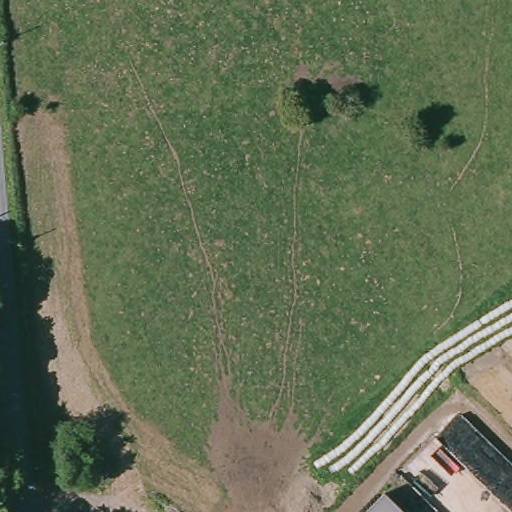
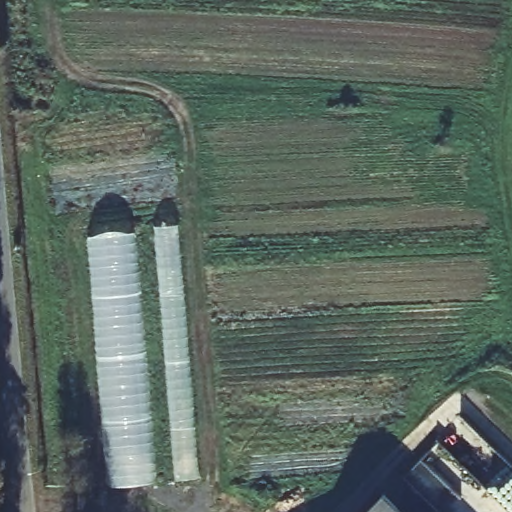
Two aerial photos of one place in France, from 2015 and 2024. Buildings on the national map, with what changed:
new [(176,479),(155,225),(179,224),(201,477),(176,479)]
new [(109,485),(89,233),(138,229),(158,480),(109,485)]
unchanged [(366,512),(382,497),(397,512),(366,512)]

